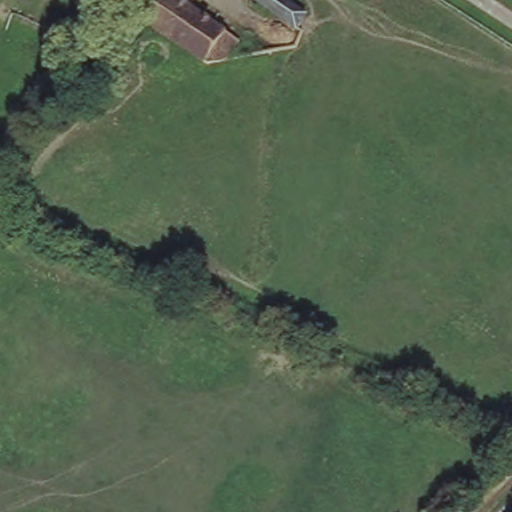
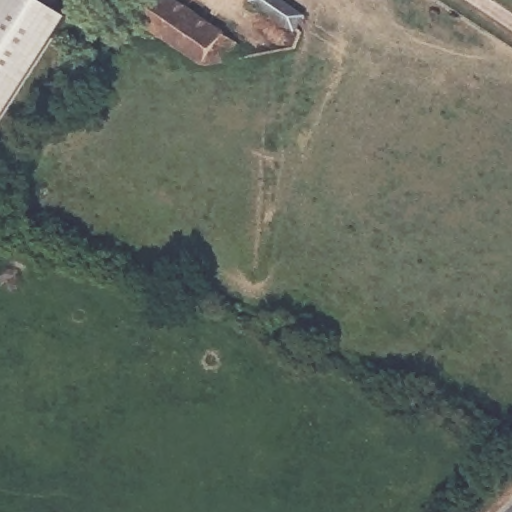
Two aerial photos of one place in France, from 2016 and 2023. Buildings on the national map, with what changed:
new [(70,24),(3,122),(0,120),(0,0),(36,0),(70,24)]
unchanged [(124,12),(133,0),(169,0),(218,33),(209,48),(182,52),(144,26),(124,12)]
unchanged [(293,29),(250,2),(252,0),(278,0),(302,17),(293,29)]

